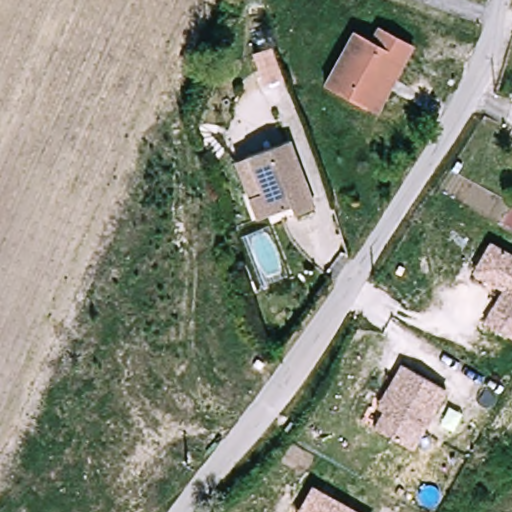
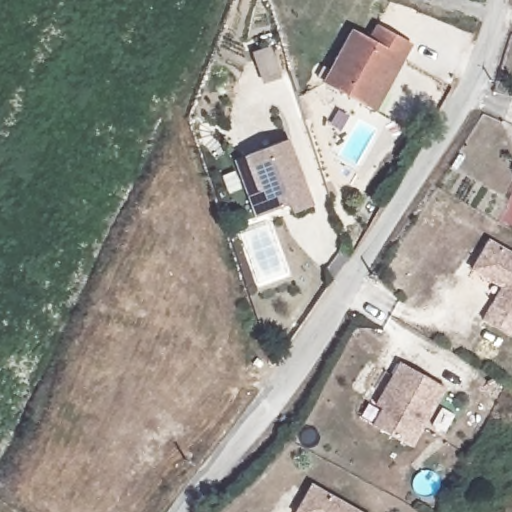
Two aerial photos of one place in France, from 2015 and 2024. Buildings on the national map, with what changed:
unchanged [(363,109),(334,90),(360,46),(371,53),(378,40),(407,59),(400,70),(371,115),(363,109)]
unchanged [(314,212),(293,219),(289,209),(255,219),(248,195),(236,159),(246,155),(290,140),(314,212)]
unchanged [(512,256),(512,338),(489,325),(509,291),(479,275),(482,269),(495,246),(512,256)]
unchanged [(451,388),(418,447),(379,426),(389,410),(381,405),(398,378),(407,363),(451,388)]
unchanged [(302,512),(304,508),(317,485),(364,512),(302,512)]

